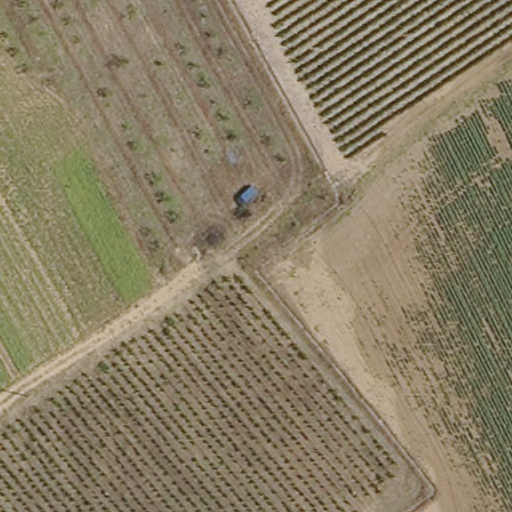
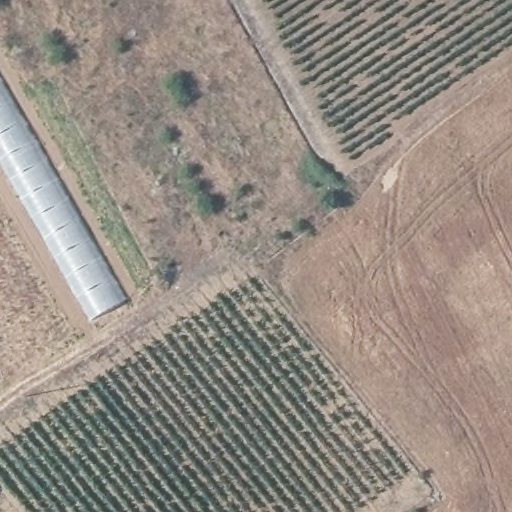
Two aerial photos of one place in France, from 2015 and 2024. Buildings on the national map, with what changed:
new [(90,320),(0,160),(0,82),(123,300),(90,320)]

